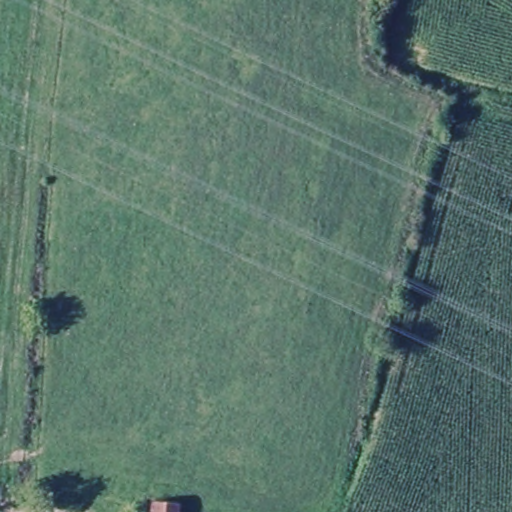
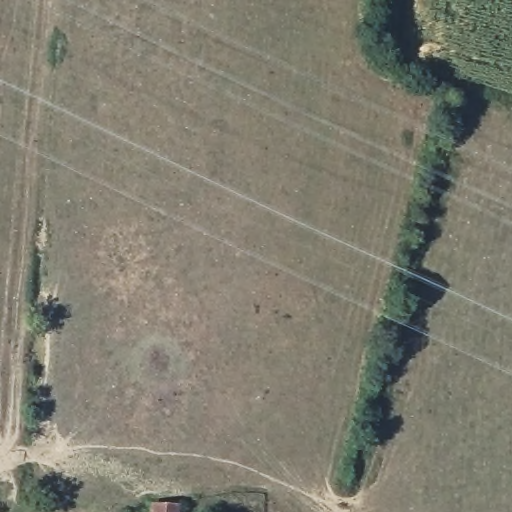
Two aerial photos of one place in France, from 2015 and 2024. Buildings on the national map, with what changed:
unchanged [(183,512),(152,512),(152,505),(183,506),(183,512)]

